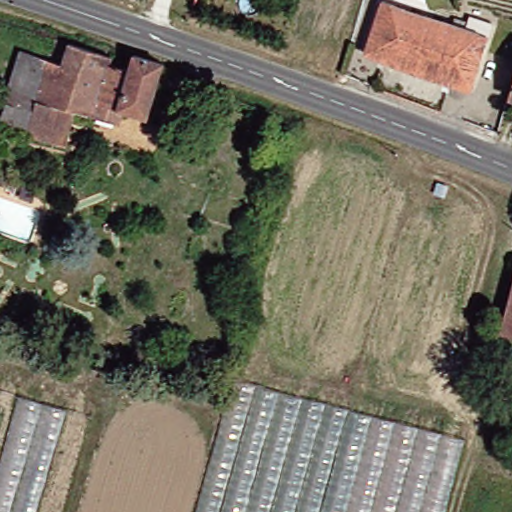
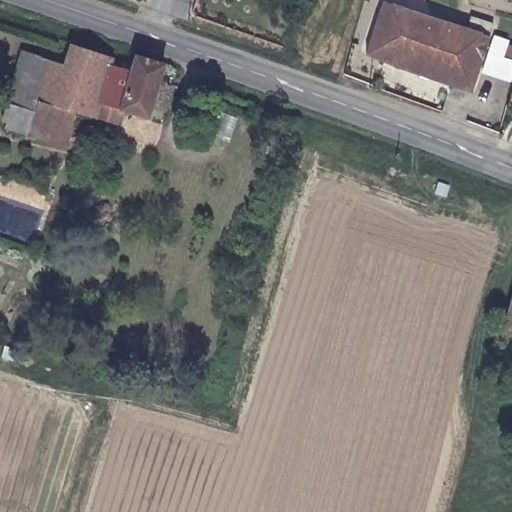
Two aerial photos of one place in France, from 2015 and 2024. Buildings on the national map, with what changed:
unchanged [(450,82),(368,55),(386,0),(388,0),(476,30),(481,16),(496,21),(483,61),(473,90),(450,82)]
unchanged [(43,131),(32,128),(51,65),(53,59),(67,64),(74,44),(115,56),(114,62),(135,69),(139,54),(168,64),(151,117),(99,102),(96,113),(81,109),(76,125),(71,141),(43,131)]
unchanged [(21,56),(51,65),(32,127),(3,119),(21,56)]
unchanged [(511,330),(512,326),(512,330),(511,330)]
demolished [(199,512),(237,381),(356,413),(328,512),(199,512)]
demolished [(65,512),(0,512),(0,389),(93,413),(65,512)]
demolished [(466,442),(446,512),(328,512),(356,413),(466,442)]

